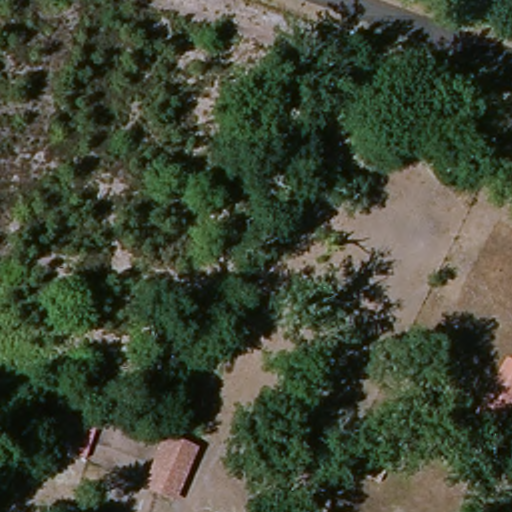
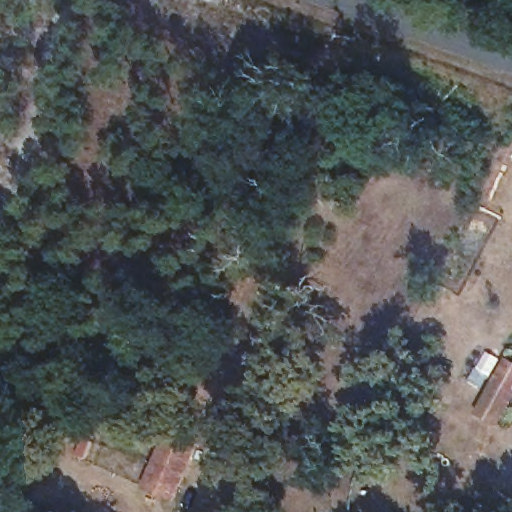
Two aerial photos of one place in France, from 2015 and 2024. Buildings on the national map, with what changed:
unchanged [(476,403),(503,362),(512,367),(512,403),(501,419),(476,403)]
unchanged [(96,430),(84,457),(67,449),(79,421),(96,430)]
unchanged [(170,497),(147,490),(162,444),(184,452),(170,497)]

